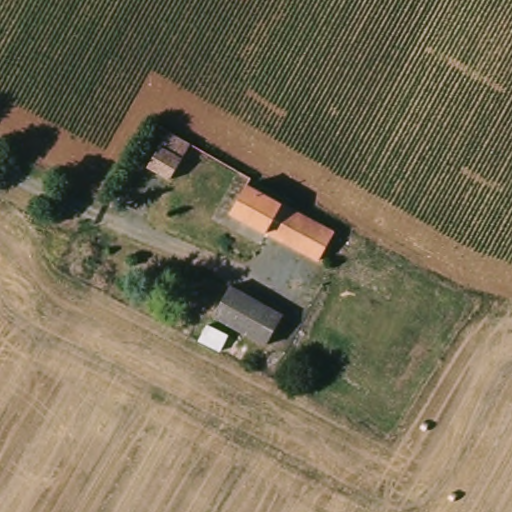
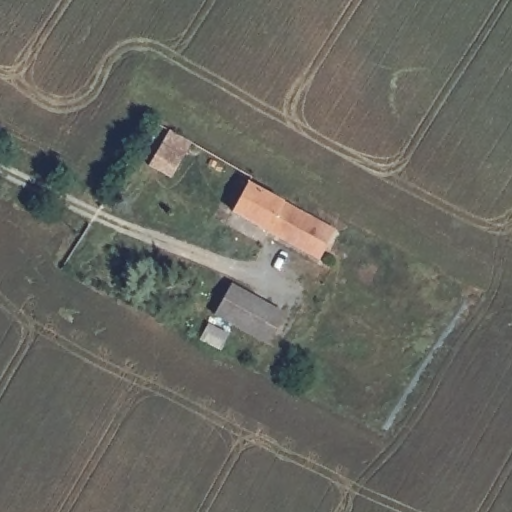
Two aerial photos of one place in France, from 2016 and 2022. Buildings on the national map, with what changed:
unchanged [(172,186),(149,175),(165,146),(188,159),(172,186)]
unchanged [(338,229),(326,257),(233,215),(247,186),(338,229)]
unchanged [(284,313),(271,340),(219,315),(235,289),(284,313)]

